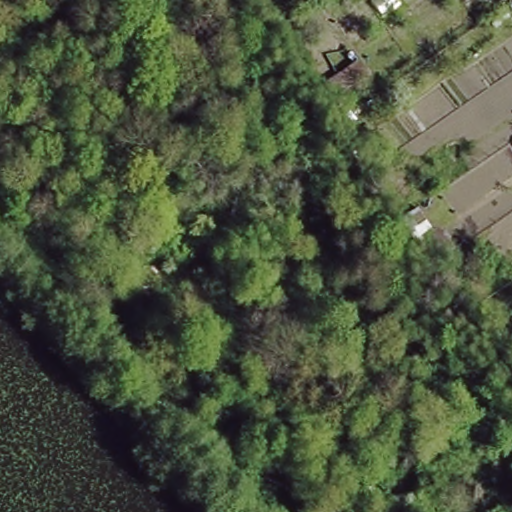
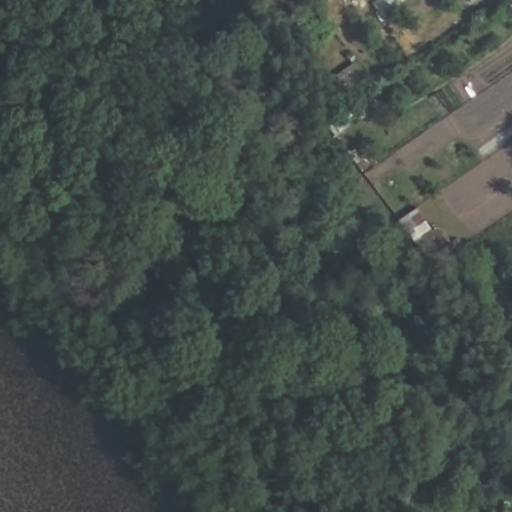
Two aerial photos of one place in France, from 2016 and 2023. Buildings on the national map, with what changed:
unchanged [(330,101),(319,82),(359,56),(369,75),(330,101)]

